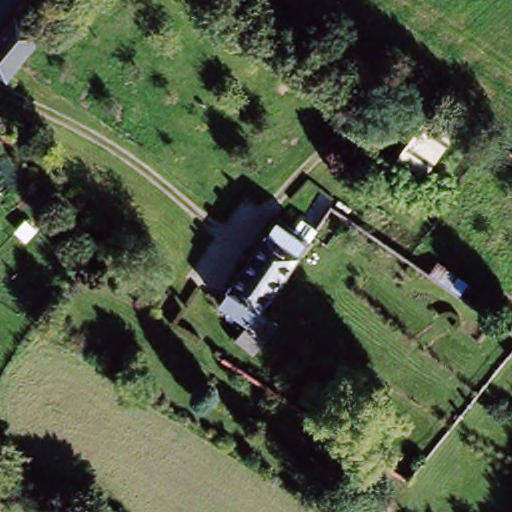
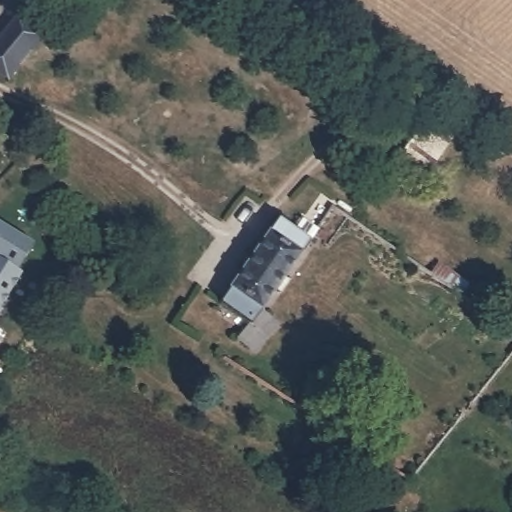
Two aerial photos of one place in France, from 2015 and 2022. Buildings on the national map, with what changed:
unchanged [(47,35),(7,80),(0,75),(0,32),(18,11),(47,35)]
unchanged [(459,132),(447,149),(422,180),(402,165),(390,155),(402,140),(422,115),(427,107),(459,132)]
unchanged [(249,355),(234,342),(232,341),(246,325),(221,308),(217,306),(275,222),(280,226),(305,242),(255,312),(272,325),(249,355)]
new [(33,245),(16,272),(0,262),(0,224),(33,245)]
new [(21,275),(0,308),(0,262),(21,275)]
unchanged [(435,266),(465,285),(458,295),(428,276),(435,266)]
new [(2,312),(0,314),(0,311),(2,312)]
unchanged [(512,317),(512,332),(505,327),(512,317)]

